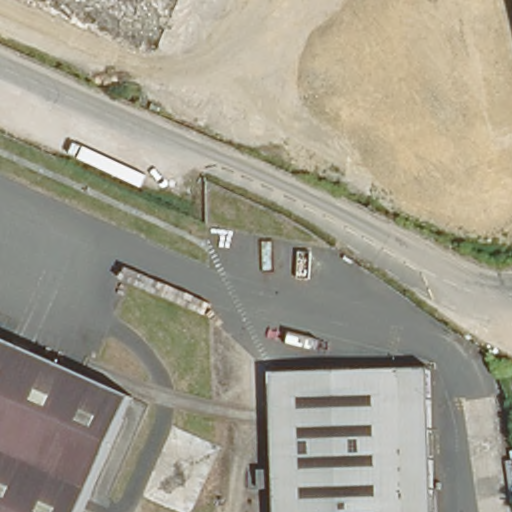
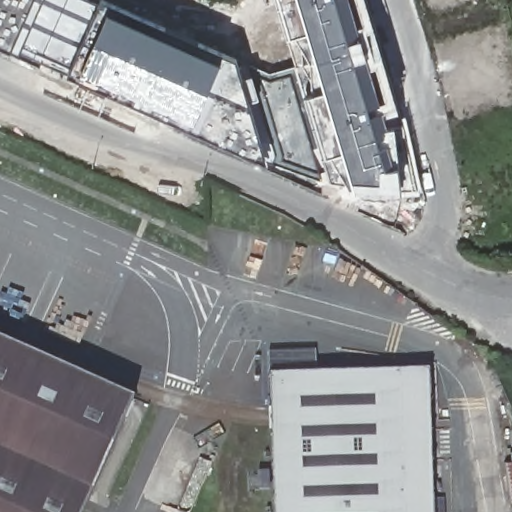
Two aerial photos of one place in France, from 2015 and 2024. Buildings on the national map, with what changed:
new [(0,0),(102,0),(108,2),(235,59),(268,72),(297,66),(289,36),(277,0),(367,0),(400,110),(419,187),(400,190),(375,191),(353,186),(319,179),(267,161),(66,75),(9,47),(0,43),(0,0)]
demolished [(147,42),(50,0),(166,0),(161,10),(147,42)]
unchanged [(0,512),(0,340),(131,397),(81,512),(0,512)]
unchanged [(436,512),(276,512),(269,376),(430,368),(436,512)]
demolished [(220,447),(190,512),(183,512),(143,494),(172,427),(220,447)]
unchanged [(512,457),(512,499),(507,500),(501,459),(512,457)]
unchanged [(271,492),(260,492),(259,473),(270,473),(271,492)]

